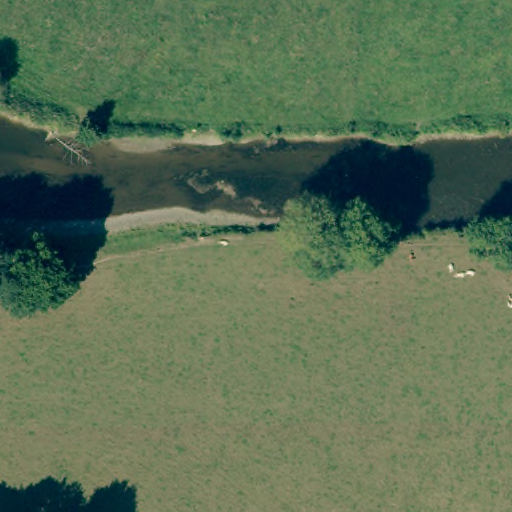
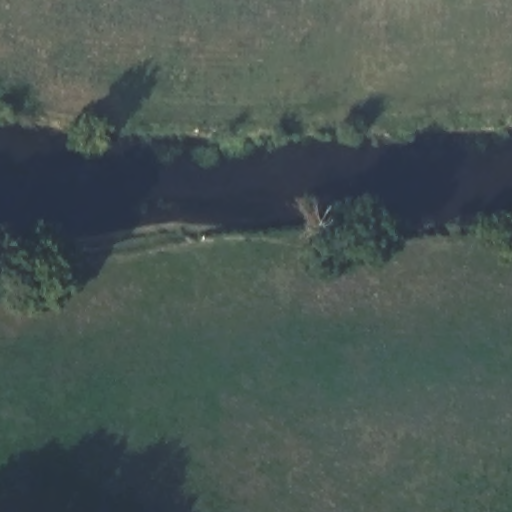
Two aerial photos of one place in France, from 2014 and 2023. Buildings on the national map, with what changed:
[]

